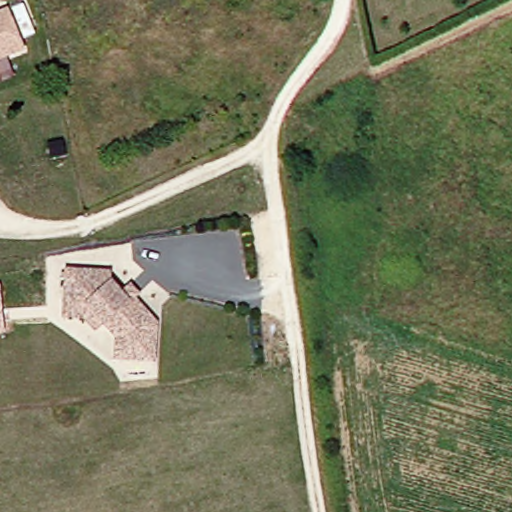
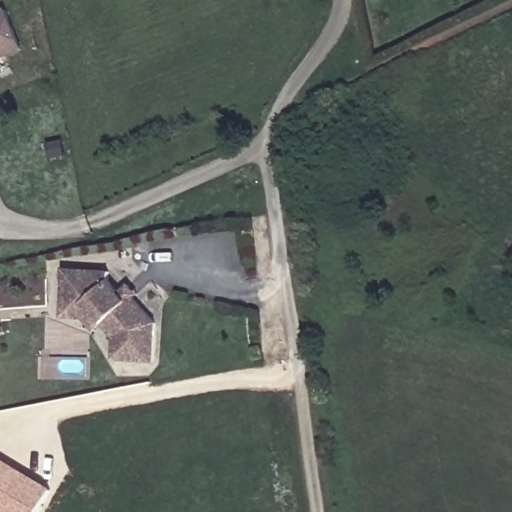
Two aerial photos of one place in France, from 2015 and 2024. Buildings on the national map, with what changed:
unchanged [(0,62),(0,17),(10,14),(22,54),(0,62)]
unchanged [(82,314),(60,313),(61,298),(63,260),(108,263),(107,272),(117,284),(122,280),(157,320),(154,360),(114,357),(115,335),(102,322),(95,329),(82,314)]
unchanged [(0,336),(0,291),(9,334),(0,336)]
new [(0,512),(0,457),(53,489),(39,512),(0,512)]

